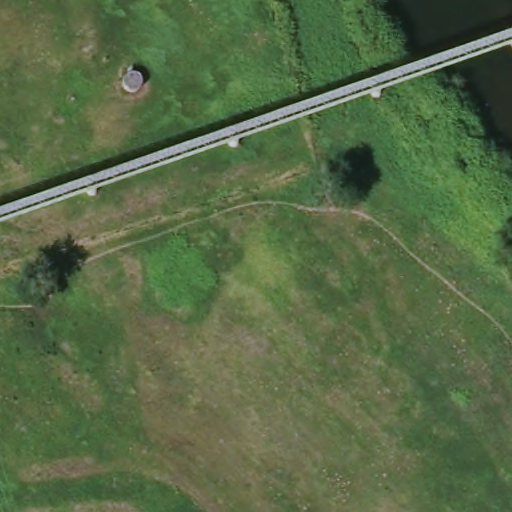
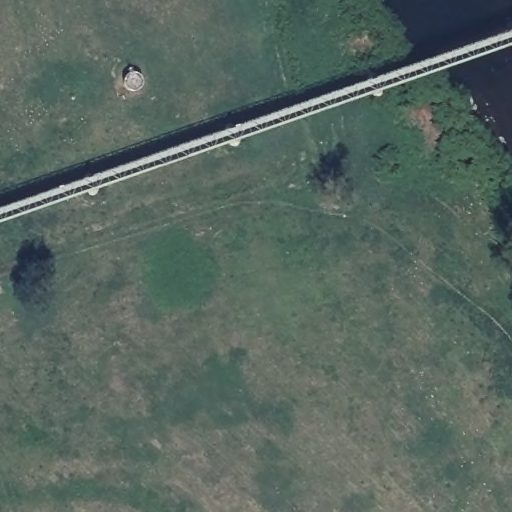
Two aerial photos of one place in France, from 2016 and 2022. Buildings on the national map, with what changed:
unchanged [(132,90),(130,90),(129,90),(127,89),(125,86),(125,85),(125,83),(125,81),(125,80),(125,77),(127,74),(129,73),(130,73),(132,72),(133,72),(135,73),(137,73),(138,74),(139,75),(140,76),(140,78),(141,79),(142,80),(142,82),(141,84),(140,86),(140,88),(139,88),(137,89),(135,90),(134,90),(132,91),(132,90)]
unchanged [(472,158),(472,162),(471,164),(470,165),(467,168),(465,168),(464,168),(461,168),(460,168),(457,167),(456,166),(455,165),(455,164),(454,161),(455,157),(455,155),(456,154),(459,152),(460,151),(462,151),(464,151),(465,151),(467,151),(469,152),(472,158)]

